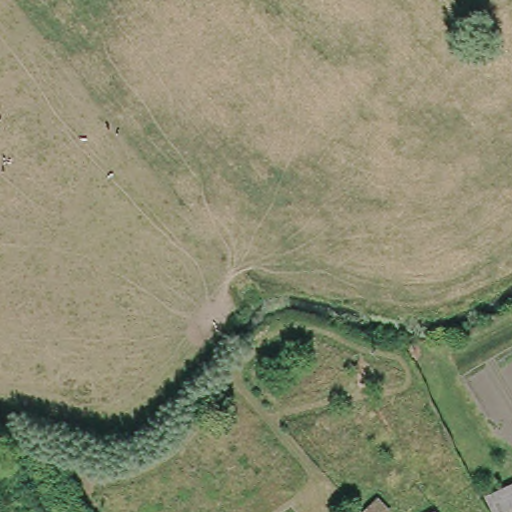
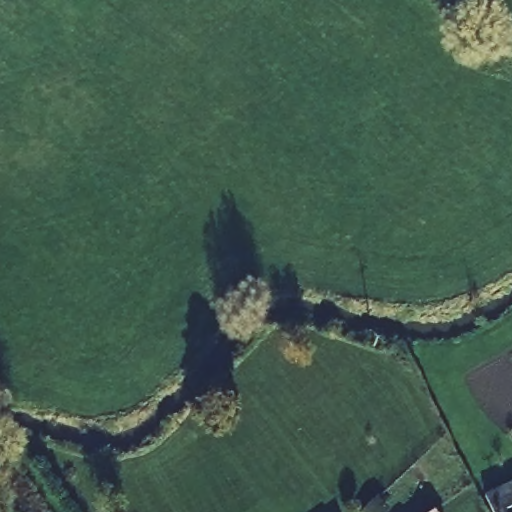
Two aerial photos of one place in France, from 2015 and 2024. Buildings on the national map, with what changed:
unchanged [(483,491),(512,477),(512,501),(503,506),(507,512),(493,512),(492,510),(483,491)]
unchanged [(438,512),(432,512),(436,510),(438,512)]

